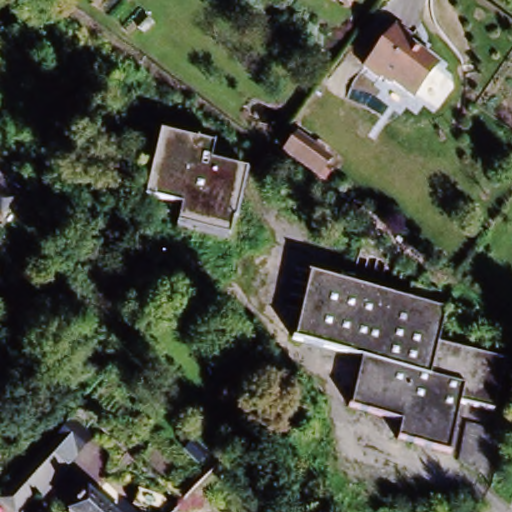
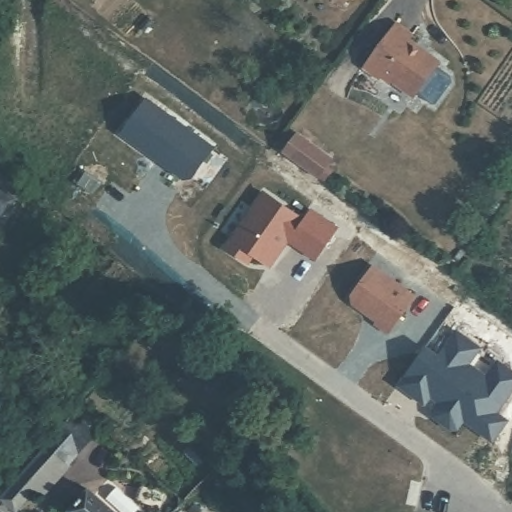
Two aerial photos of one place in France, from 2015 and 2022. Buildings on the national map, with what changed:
unchanged [(343,5),(336,0),(347,0),(343,5)]
unchanged [(402,81),(393,81),(385,75),(382,77),(365,67),(400,22),(447,55),(419,95),(402,81)]
new [(209,157),(190,182),(183,182),(167,170),(168,168),(158,161),(156,164),(120,137),(143,109),(209,157)]
demolished [(245,170),(220,247),(170,231),(175,215),(141,204),(167,127),(215,144),(210,160),(245,170)]
unchanged [(308,171),(288,156),(303,136),(323,151),(308,171)]
unchanged [(5,200),(0,208),(0,189),(10,196),(5,200)]
new [(264,197),(306,225),(312,215),(337,233),(315,261),(285,240),(279,249),(282,250),(270,267),(255,257),(249,265),(227,249),(264,197)]
new [(351,299),(373,268),(415,299),(389,335),(376,326),(377,323),(352,307),(351,299)]
demolished [(455,306),(447,337),(512,352),(512,356),(500,402),(467,395),(453,447),(405,436),(408,418),(356,406),(368,355),(301,338),(317,272),(455,306)]
new [(464,422),(455,430),(450,431),(434,418),(433,412),(441,403),(432,396),(423,406),(399,387),(425,352),(438,361),(457,336),(478,351),(465,367),(485,381),(496,366),(512,377),(512,390),(494,416),(505,425),(490,443),(464,422)]
unchanged [(19,508),(16,512),(12,512),(0,503),(47,445),(37,438),(44,427),(55,436),(71,417),(81,426),(90,433),(82,442),(45,489),(38,497),(32,492),(19,508)]
unchanged [(81,500),(75,494),(81,486),(87,492),(90,489),(97,495),(115,512),(75,512),(72,510),(81,500)]
unchanged [(176,512),(169,512),(173,508),(176,512)]

